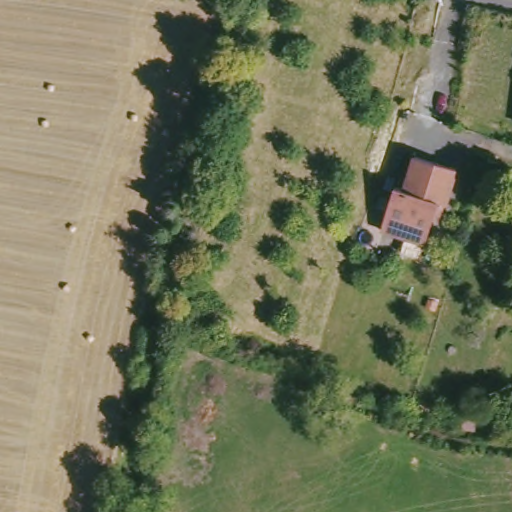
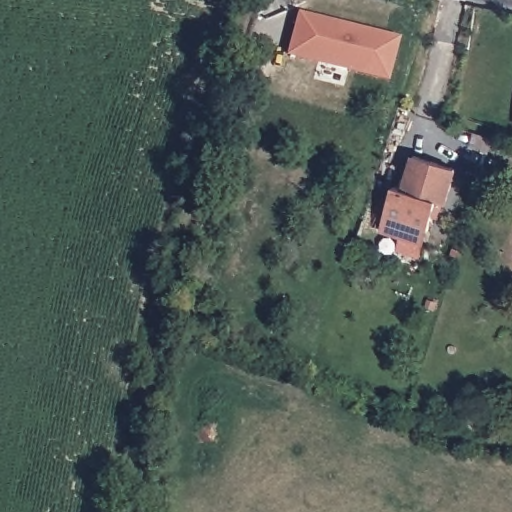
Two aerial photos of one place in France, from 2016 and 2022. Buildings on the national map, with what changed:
new [(388,81),(287,55),(297,11),(399,38),(388,81)]
unchanged [(459,171),(447,206),(439,203),(425,246),(381,232),(395,188),(402,189),(414,157),(459,171)]

